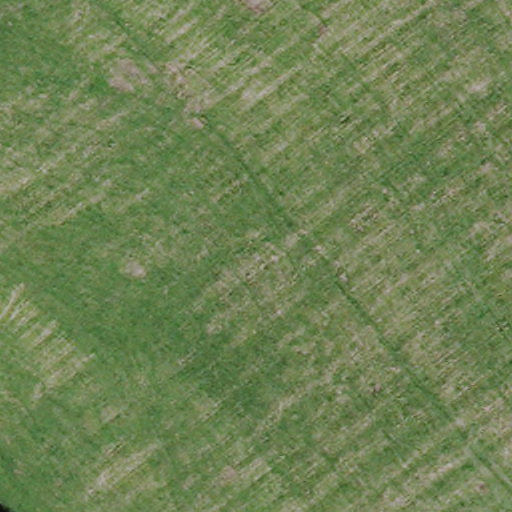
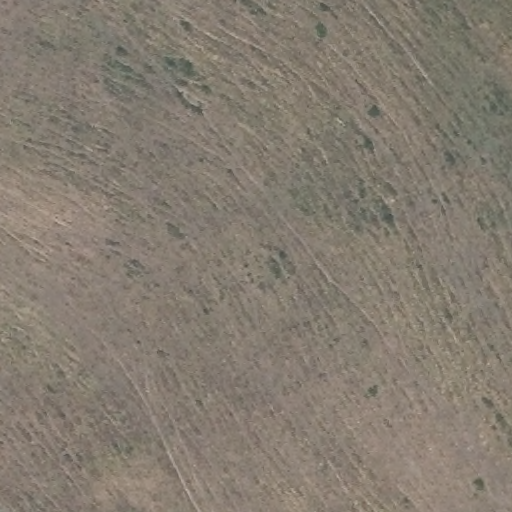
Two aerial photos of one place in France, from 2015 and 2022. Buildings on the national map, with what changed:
[]

